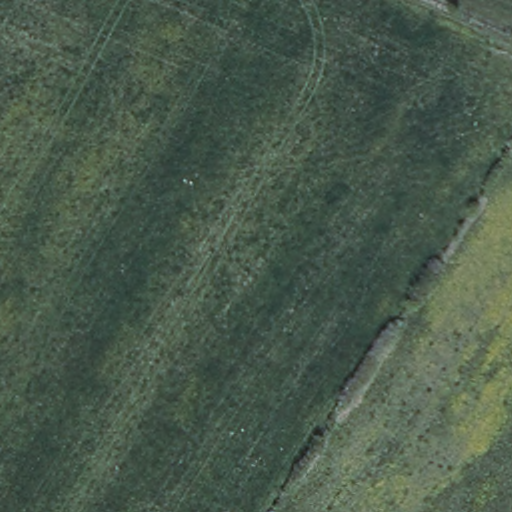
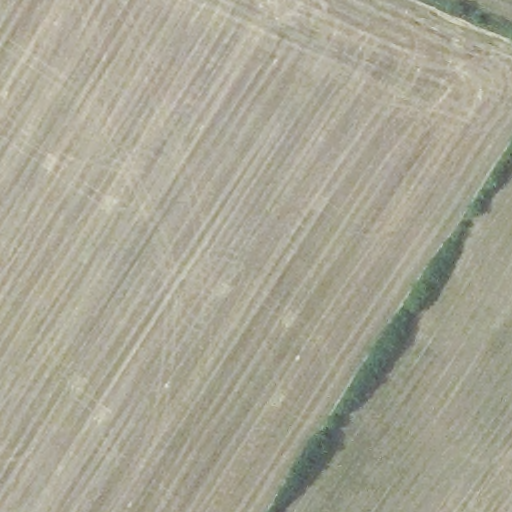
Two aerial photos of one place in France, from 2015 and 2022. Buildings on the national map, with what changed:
[]

